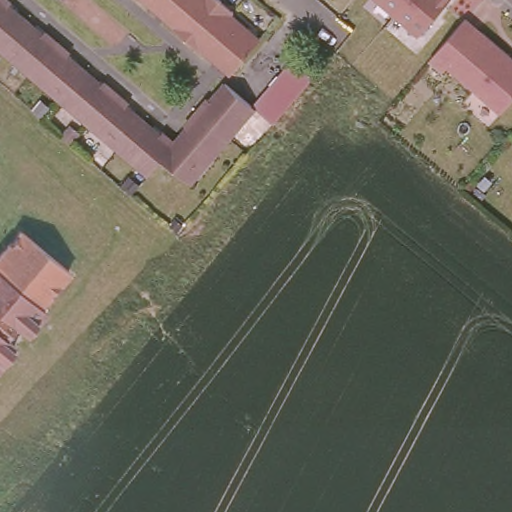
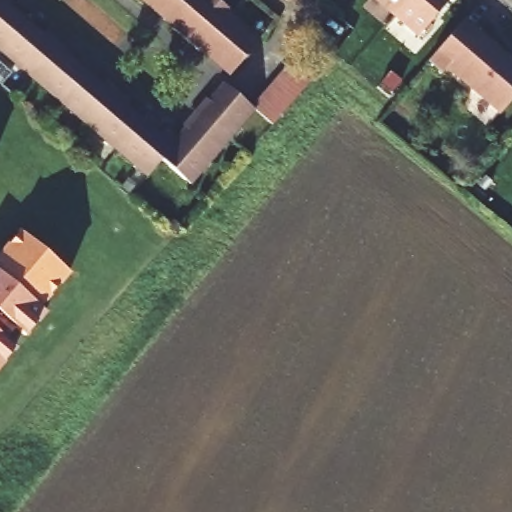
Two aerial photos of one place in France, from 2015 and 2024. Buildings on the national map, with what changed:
unchanged [(182,182),(158,161),(144,177),(0,51),(0,0),(6,0),(8,2),(7,5),(40,33),(41,32),(67,54),(65,56),(98,85),(100,83),(126,105),(124,107),(157,136),(159,134),(174,147),(180,140),(177,137),(183,130),(181,127),(205,101),(206,102),(221,85),(248,108),(251,111),(210,157),(186,186),(182,182)]
unchanged [(231,15),(229,18),(255,42),(226,75),(198,50),(195,52),(170,30),(172,27),(141,0),(215,0),(231,15)]
unchanged [(394,12),(379,0),(446,0),(418,34),(394,12)]
unchanged [(475,27),(512,59),(512,98),(500,111),(446,65),(442,70),(429,58),(461,20),(473,30),(475,27)]
unchanged [(292,58),(314,77),(270,127),(251,111),(248,108),(292,58)]
unchanged [(19,233),(66,275),(36,308),(41,313),(21,336),(8,325),(0,334),(0,254),(19,233)]
unchanged [(0,359),(0,338),(11,347),(0,359)]

